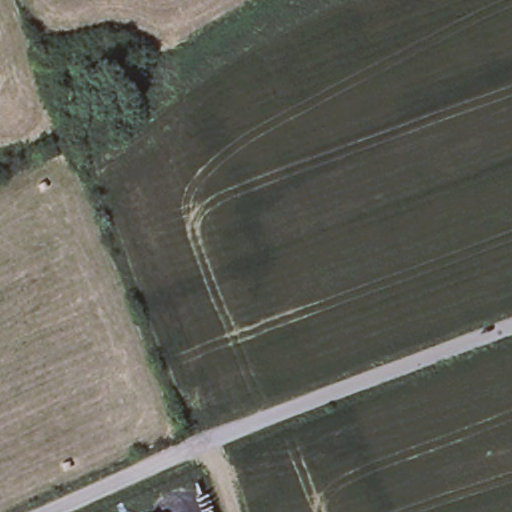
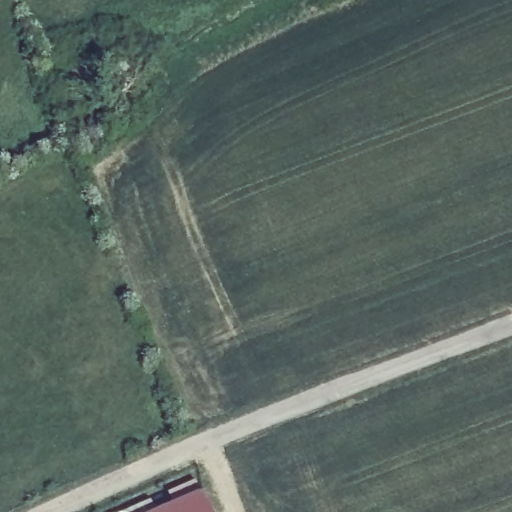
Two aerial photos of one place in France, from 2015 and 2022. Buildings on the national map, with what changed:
new [(204,490),(213,512),(154,512),(204,490)]

